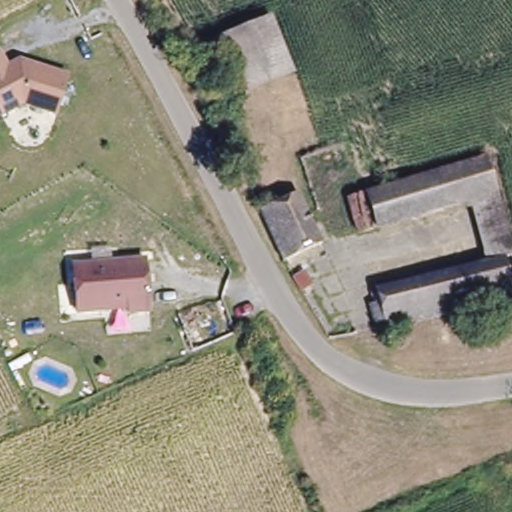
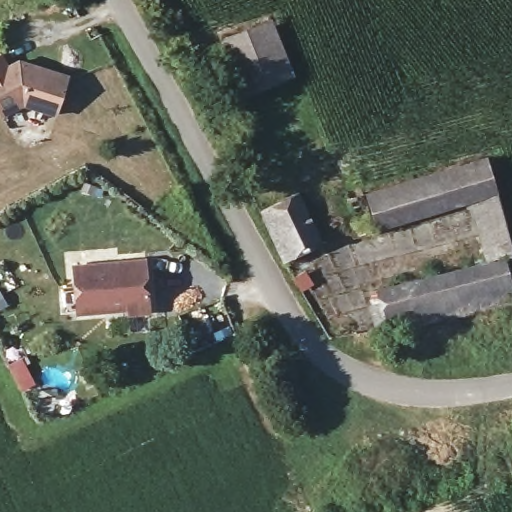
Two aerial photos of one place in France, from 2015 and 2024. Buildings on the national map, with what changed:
unchanged [(290,70),(241,90),(218,36),(266,14),(290,70)]
unchanged [(22,106),(1,118),(0,116),(0,56),(6,70),(18,63),(69,79),(57,116),(22,106)]
unchanged [(486,264),(468,201),(375,229),(365,195),(483,160),(511,257),(502,260),(486,264)]
unchanged [(247,208),(286,190),(311,241),(271,258),(247,208)]
unchanged [(371,230),(356,233),(346,200),(361,196),(371,230)]
unchanged [(379,304),(376,291),(486,264),(502,260),(511,298),(385,330),(374,331),(368,306),(379,304)]
unchanged [(149,313),(129,314),(129,309),(78,314),(73,269),(146,261),(149,313)]

